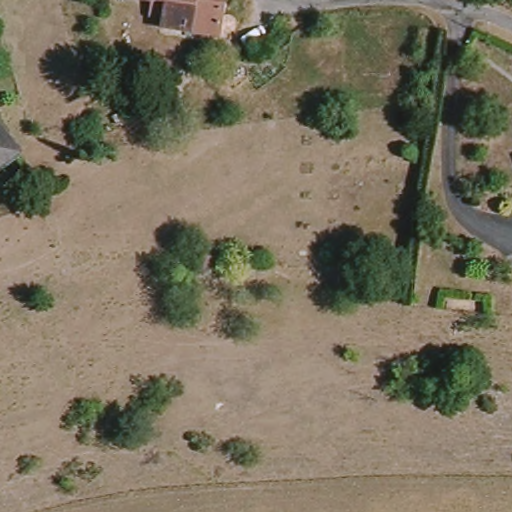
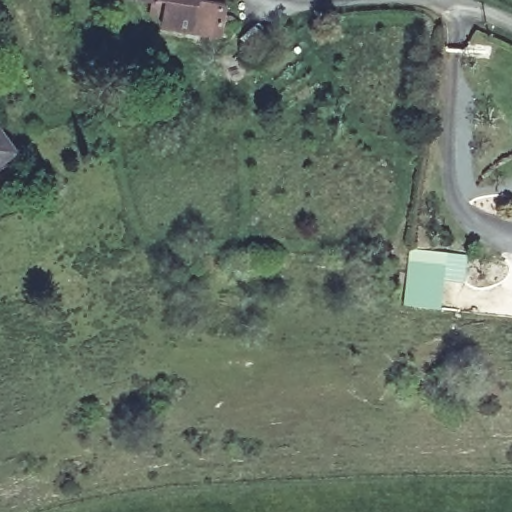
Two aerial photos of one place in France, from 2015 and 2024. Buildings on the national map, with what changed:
unchanged [(133,0),(223,0),(218,38),(172,31),(171,27),(163,26),(151,25),(155,4),(133,0)]
unchanged [(18,154),(0,168),(0,130),(18,154)]
new [(409,247),(466,253),(464,277),(444,275),(441,307),(403,304),(409,247)]
unchanged [(214,274),(199,275),(197,260),(214,259),(214,274)]

